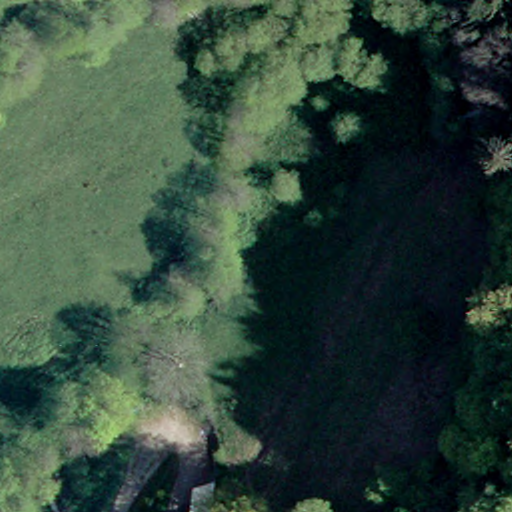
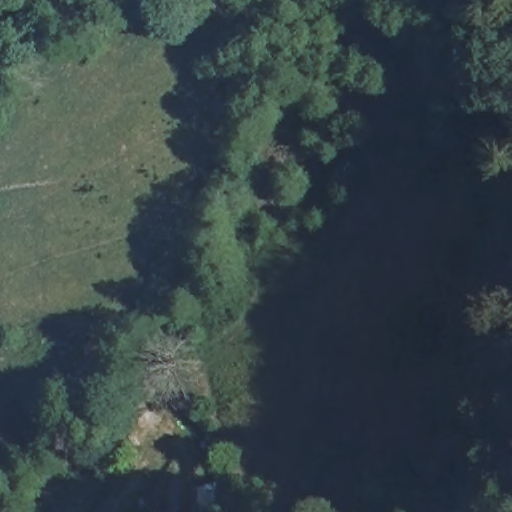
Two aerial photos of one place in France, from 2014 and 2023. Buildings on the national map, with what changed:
[]

